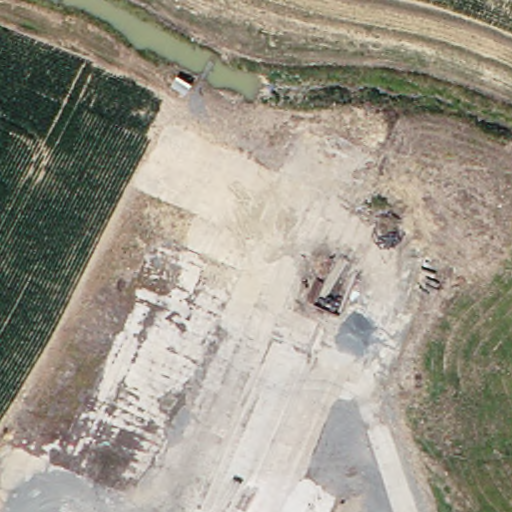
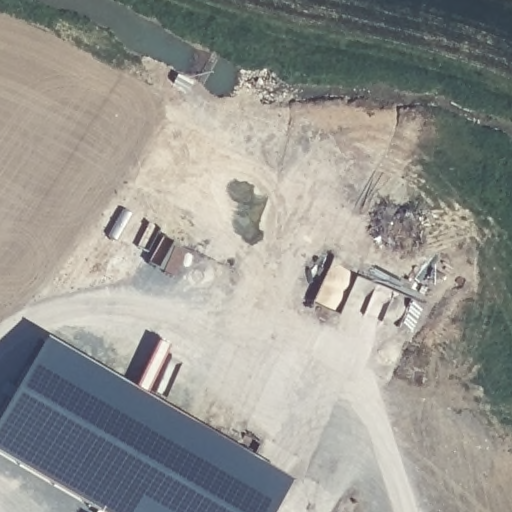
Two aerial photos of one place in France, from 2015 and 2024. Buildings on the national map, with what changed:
new [(288,482),(270,512),(99,512),(0,453),(0,413),(45,338),(288,482)]

